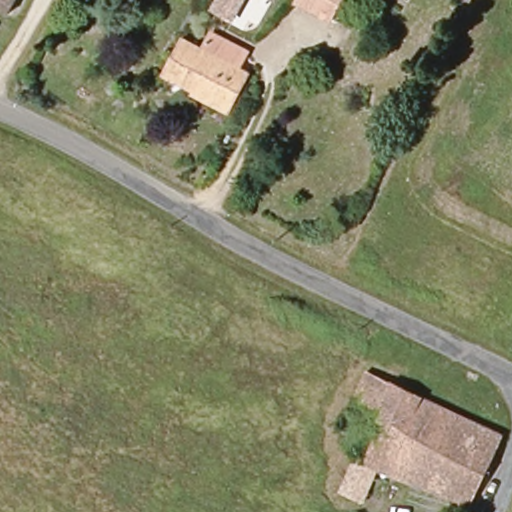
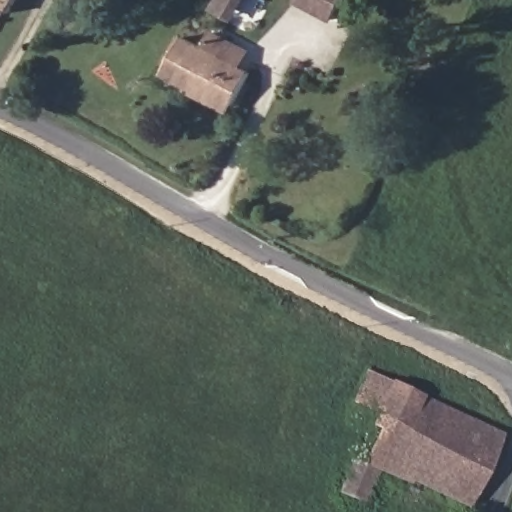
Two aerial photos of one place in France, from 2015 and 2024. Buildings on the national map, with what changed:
unchanged [(298,6),(302,0),(347,0),(335,23),(298,6)]
unchanged [(197,95),(161,75),(181,39),(203,48),(211,35),(243,52),(235,66),(247,74),(232,100),(226,109),(197,95)]
unchanged [(374,437),(363,429),(366,424),(349,413),(369,373),(505,435),(474,503),(419,480),(415,485),(370,468),(362,461),(374,437)]
unchanged [(370,468),(362,485),(372,491),(364,507),(336,493),(350,458),(362,461),(370,468)]

